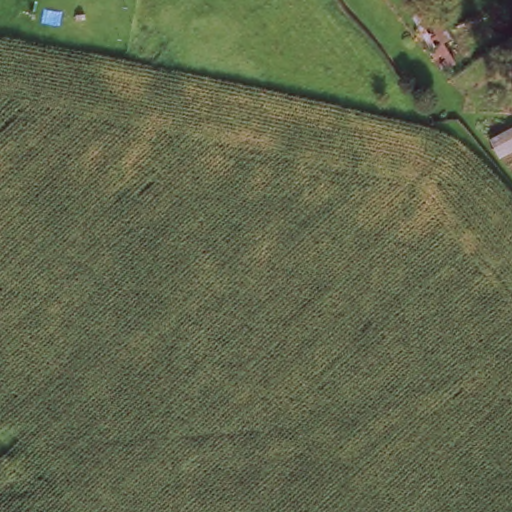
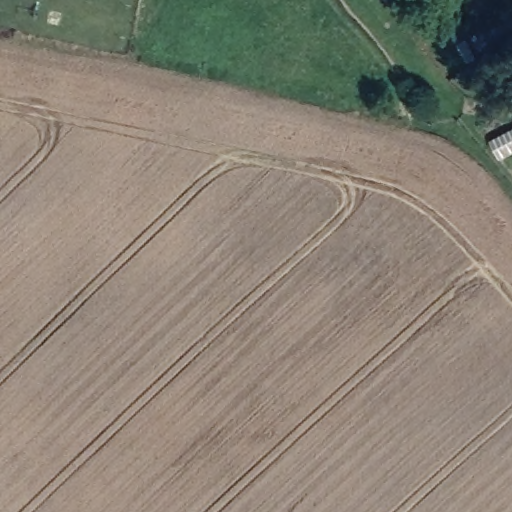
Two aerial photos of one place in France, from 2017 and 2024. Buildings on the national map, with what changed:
unchanged [(512,154),(497,161),(488,142),(512,131),(512,154)]

